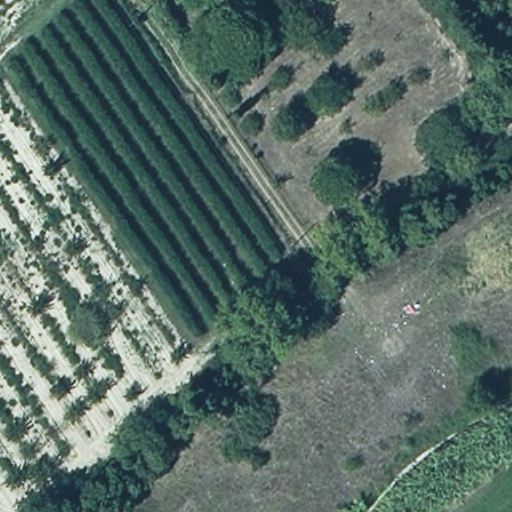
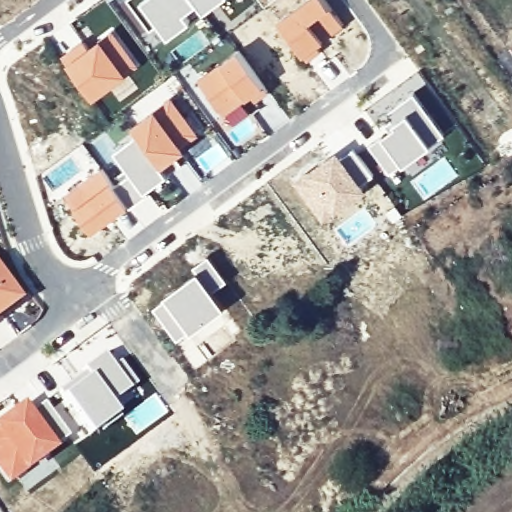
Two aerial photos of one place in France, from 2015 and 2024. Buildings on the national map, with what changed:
new [(194,0),(196,3),(186,12),(191,19),(167,36),(156,22),(153,24),(133,0),(134,0),(194,0)]
new [(196,3),(194,0),(220,0),(204,12),(196,3)]
new [(326,0),(344,25),(306,55),(278,17),(302,0),(326,0)]
new [(84,41),(92,52),(102,45),(99,41),(111,32),(136,64),(98,91),(96,89),(90,94),(63,57),(84,41)]
new [(261,100),(256,105),(249,97),(243,102),(251,113),(233,126),(198,76),(236,47),(270,92),(290,120),(274,132),(257,109),(264,105),(261,100)]
new [(413,92),(444,134),(431,144),(406,111),(394,120),(388,111),(413,92)]
new [(394,120),(406,111),(431,144),(391,172),(368,140),(394,120)]
new [(167,173),(145,189),(143,185),(138,189),(143,196),(129,206),(113,185),(131,171),(117,152),(139,135),(167,173)]
new [(336,148),(342,155),(353,147),(375,174),(364,183),(367,187),(324,220),(293,180),(336,148)]
new [(226,280),(213,291),(223,305),(178,340),(153,306),(199,273),(193,266),(208,255),(226,280)]
new [(1,287),(13,302),(0,311),(0,278),(5,285),(1,287)]
new [(83,371),(81,369),(102,353),(111,366),(118,361),(135,385),(110,402),(121,416),(103,429),(101,426),(89,435),(57,391),(72,380),(83,371)]
new [(0,466),(0,422),(18,410),(23,417),(43,402),(68,436),(9,478),(0,466)]

